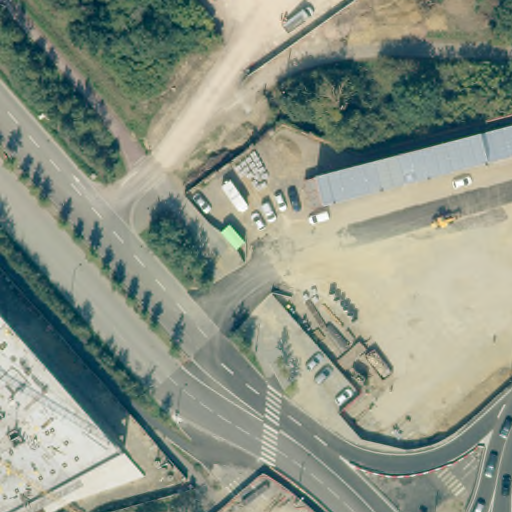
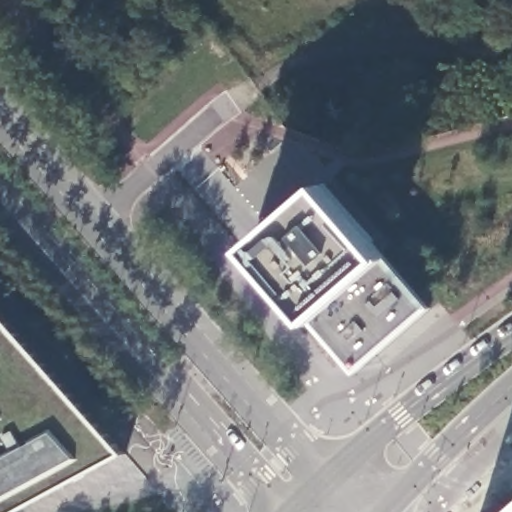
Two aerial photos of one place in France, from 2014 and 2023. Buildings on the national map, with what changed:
demolished [(207,177),(206,176),(190,150),(225,127),(242,152),(207,177)]
new [(311,324),(247,249),(324,185),(382,258),(311,324)]
new [(355,373),(311,324),(382,258),(426,307),(355,373)]
new [(0,512),(0,313),(126,456),(20,512),(0,512)]

